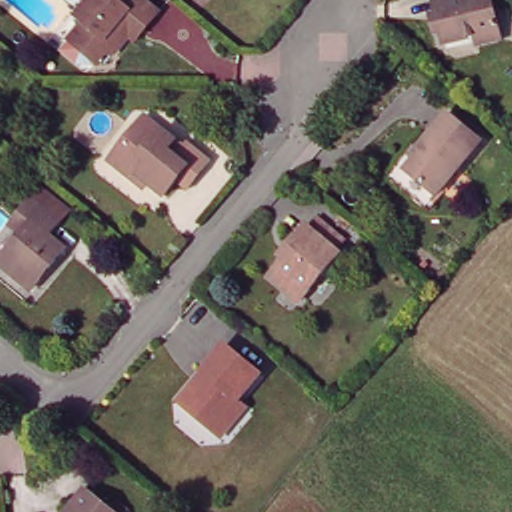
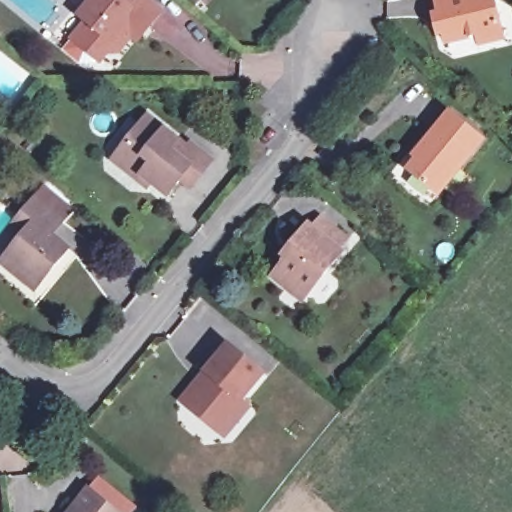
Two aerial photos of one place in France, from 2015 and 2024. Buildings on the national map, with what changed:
unchanged [(119,47),(108,49),(101,57),(74,35),(89,17),(82,11),(91,0),(154,0),(162,7),(150,21),(139,35),(133,31),(119,47)]
unchanged [(479,35),(447,42),(437,0),(495,0),(504,39),(480,44),(479,35)]
unchanged [(192,146),(213,162),(192,189),(183,181),(170,197),(145,177),(140,182),(115,161),(143,126),(149,118),(167,132),(188,150),(192,146)]
unchanged [(447,118),(480,146),(435,200),(405,174),(420,157),(417,154),(447,118)]
unchanged [(10,250),(27,230),(16,221),(37,196),(46,184),(73,206),(64,217),(58,214),(47,227),(70,245),(37,286),(17,269),(4,258),(10,250)]
unchanged [(305,301),(275,276),(297,250),(293,246),(310,226),(312,227),(322,215),(349,236),(337,248),(344,253),(305,301)]
unchanged [(225,437),(217,431),(184,402),(200,383),(209,373),(230,346),(265,375),(242,402),(250,408),(225,437)]
unchanged [(85,506),(80,502),(90,490),(115,510),(124,501),(134,509),(131,512),(80,512),(85,506)]

